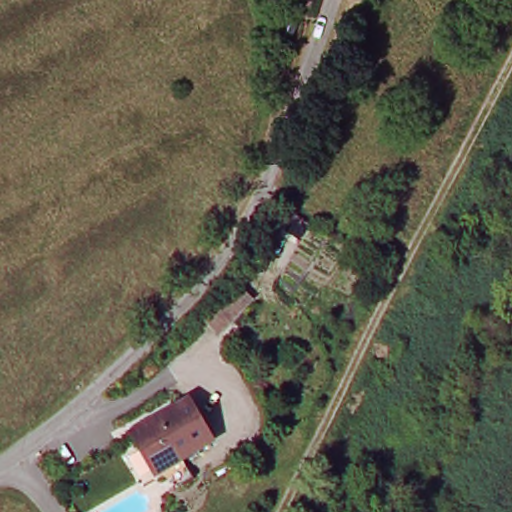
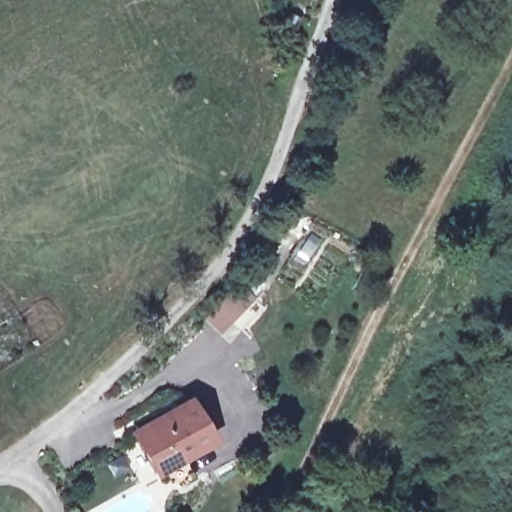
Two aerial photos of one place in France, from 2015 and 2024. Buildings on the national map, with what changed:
unchanged [(257,301),(220,334),(202,316),(240,283),(257,301)]
unchanged [(185,401),(206,436),(150,469),(130,434),(185,401)]

